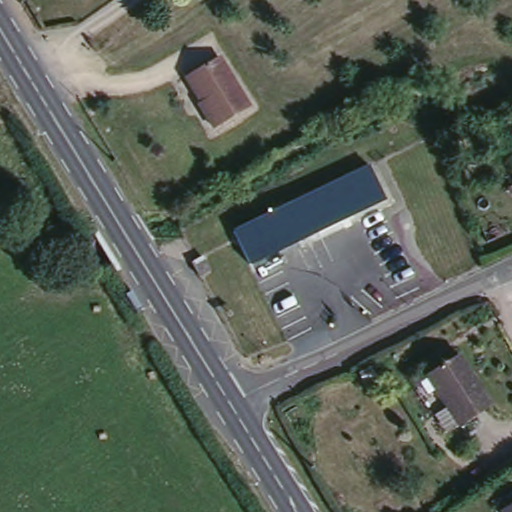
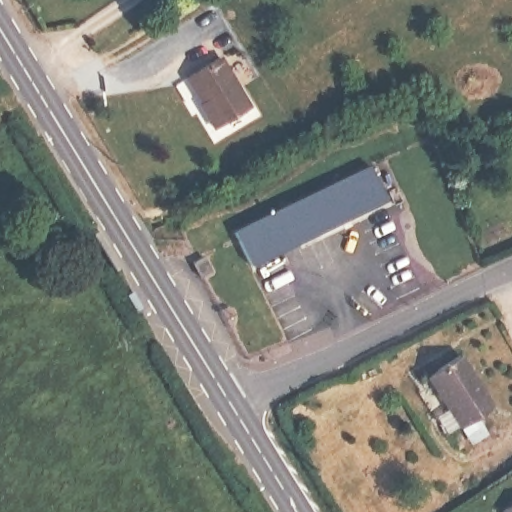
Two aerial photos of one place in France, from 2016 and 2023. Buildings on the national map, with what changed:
unchanged [(252,99),(214,125),(188,72),(225,50),(252,99)]
unchanged [(377,155),(397,190),(233,277),(213,241),(377,155)]
unchanged [(172,251),(180,265),(170,271),(162,257),(172,251)]
unchanged [(457,353),(490,408),(458,426),(425,371),(457,353)]
unchanged [(512,512),(502,512),(499,506),(512,498),(512,512)]

